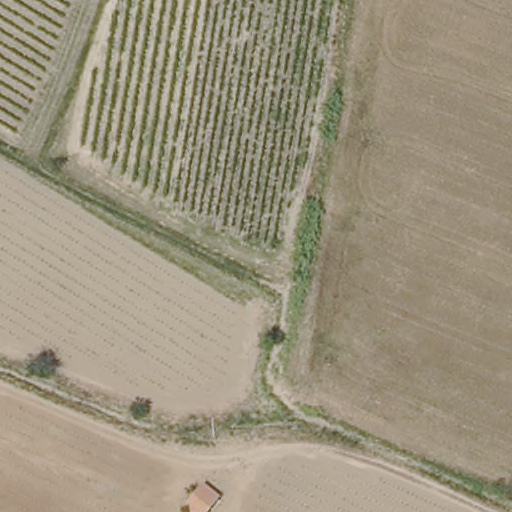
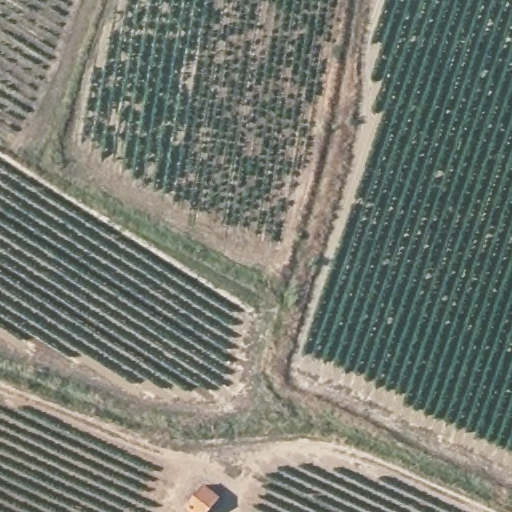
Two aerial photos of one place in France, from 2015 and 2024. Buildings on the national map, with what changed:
unchanged [(223,493),(207,512),(197,512),(183,503),(205,477),(223,493)]

